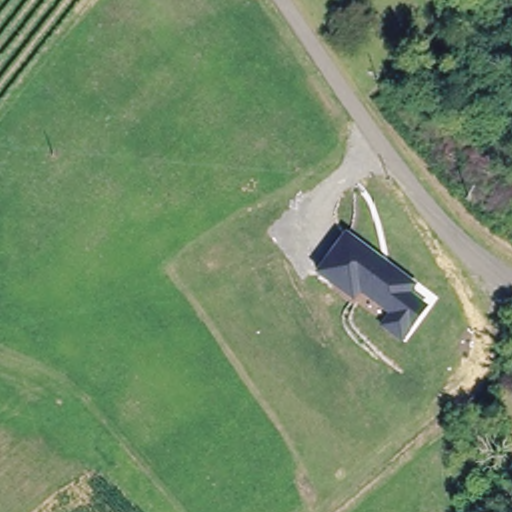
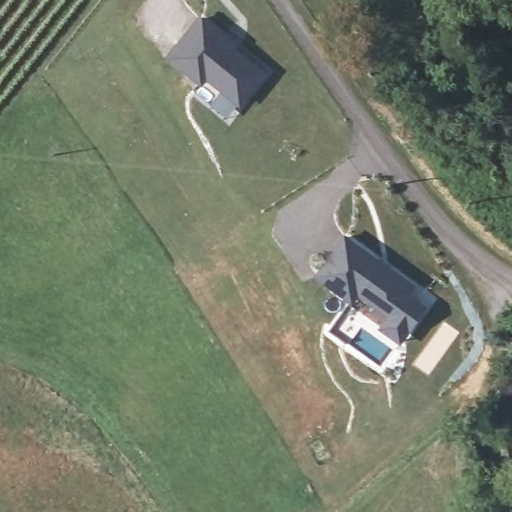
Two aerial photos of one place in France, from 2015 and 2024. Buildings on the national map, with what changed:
new [(240,107),(237,104),(227,117),(211,104),(222,91),(208,80),(203,85),(167,55),(203,14),(236,41),(233,45),(267,72),(240,107)]
unchanged [(429,307),(403,343),(380,327),(388,315),(360,295),(354,302),(315,276),(346,234),(417,286),(412,295),(429,307)]

